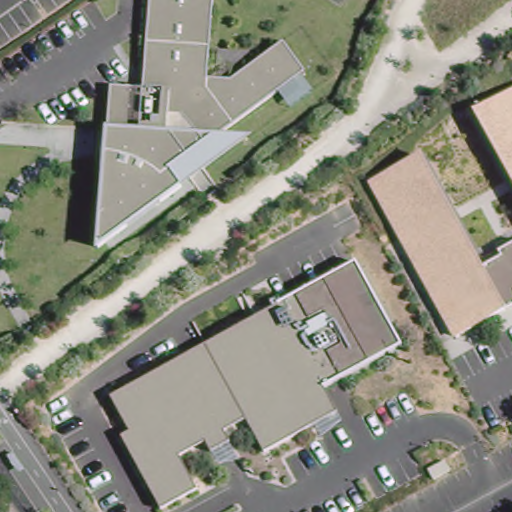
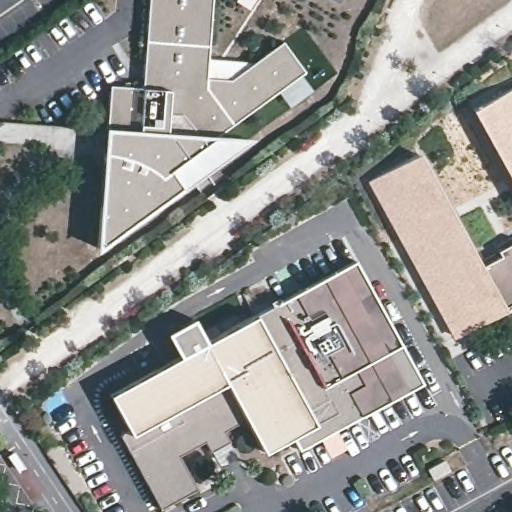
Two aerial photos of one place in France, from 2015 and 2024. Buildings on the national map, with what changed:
unchanged [(103,80),(142,79),(147,0),(212,0),(207,71),(231,73),(283,35),(307,67),(222,130),(256,133),(92,246),(101,126),(103,80)]
unchanged [(512,88),(512,178),(473,110),(512,88)]
unchanged [(368,180),(421,151),(485,264),(512,249),(512,305),(457,332),(368,180)]
unchanged [(402,346),(324,387),(336,409),(265,448),(247,419),(178,454),(200,486),(164,507),(122,436),(128,429),(111,396),(358,261),(402,346)]
new [(291,434),(314,421),(336,409),(324,387),(402,346),(423,384),(300,451),(291,434)]

